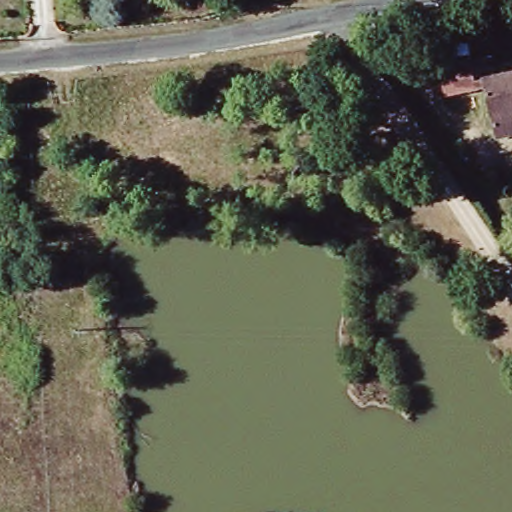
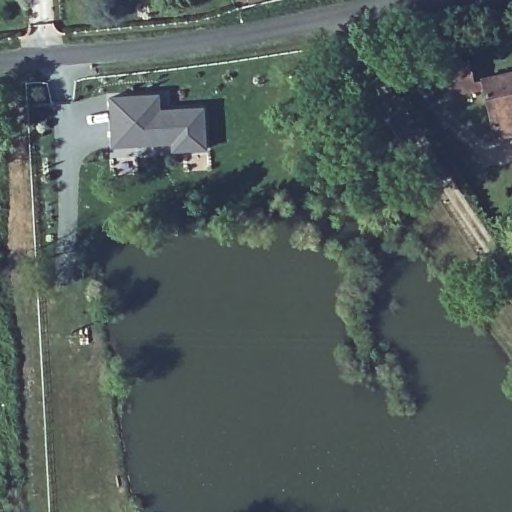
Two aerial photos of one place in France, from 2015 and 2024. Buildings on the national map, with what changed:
unchanged [(467,89),(437,96),(431,66),(461,59),(467,89)]
unchanged [(512,71),(512,117),(488,122),(487,116),(480,78),(512,71)]
new [(116,137),(114,93),(162,90),(162,106),(174,105),(207,103),(209,144),(176,146),(176,138),(155,140),(134,141),(117,142),(116,137)]

